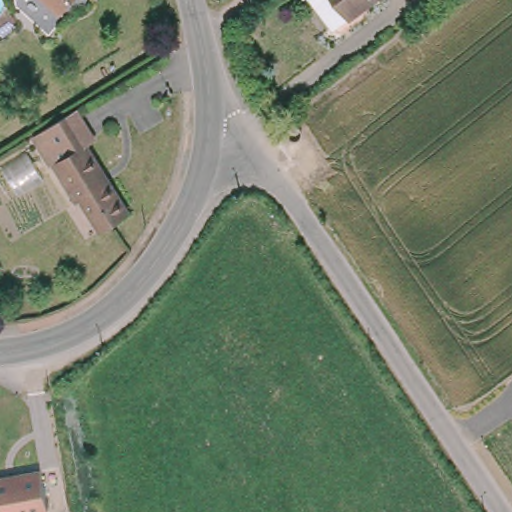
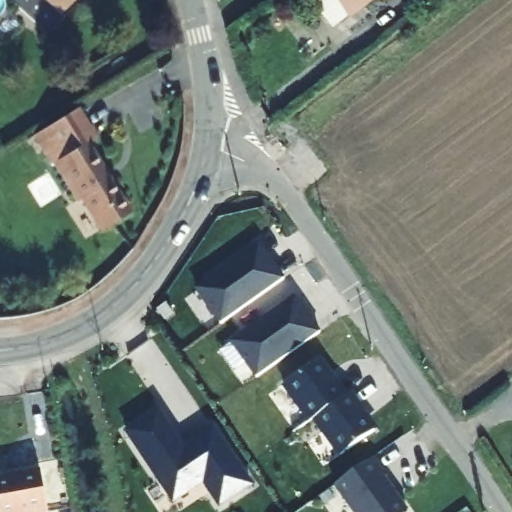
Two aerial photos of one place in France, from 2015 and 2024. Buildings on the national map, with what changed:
unchanged [(49,0),(75,0),(63,13),(49,0)]
unchanged [(348,20),(332,0),(373,0),(348,20)]
unchanged [(95,137),(86,142),(130,210),(102,227),(83,197),(78,200),(35,135),(76,108),(95,137)]
new [(285,278),(222,325),(196,290),(259,244),(285,278)]
new [(296,297),(319,330),(256,375),(232,341),(296,297)]
new [(319,360),(335,382),(338,380),(348,395),(311,421),(284,385),(319,360)]
new [(361,406),(359,408),(375,430),(341,455),(315,418),(351,392),(361,406)]
new [(170,430),(166,433),(180,455),(187,450),(183,444),(210,426),(248,482),(216,503),(195,472),(165,492),(123,430),(154,408),(170,430)]
new [(381,472),(379,474),(387,486),(385,487),(393,498),(397,498),(405,510),(405,512),(352,512),(333,485),(370,458),(381,472)]
unchanged [(47,512),(0,512),(0,510),(0,478),(44,475),(47,512)]

